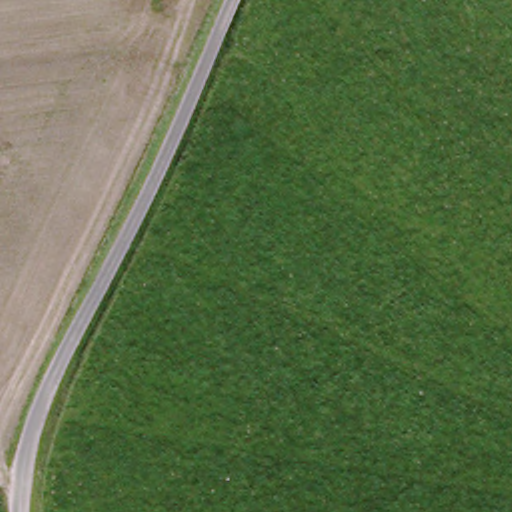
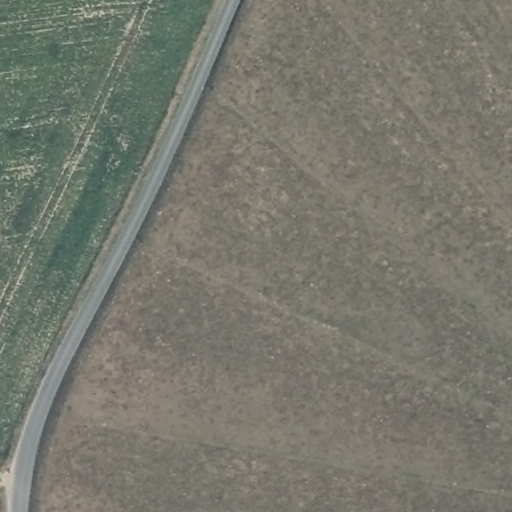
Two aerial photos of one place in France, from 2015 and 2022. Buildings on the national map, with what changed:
[]

